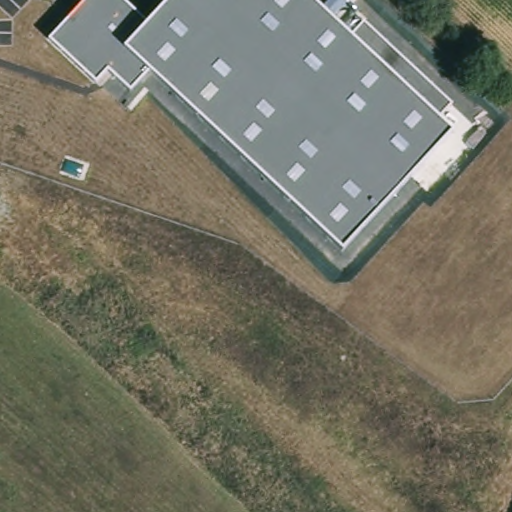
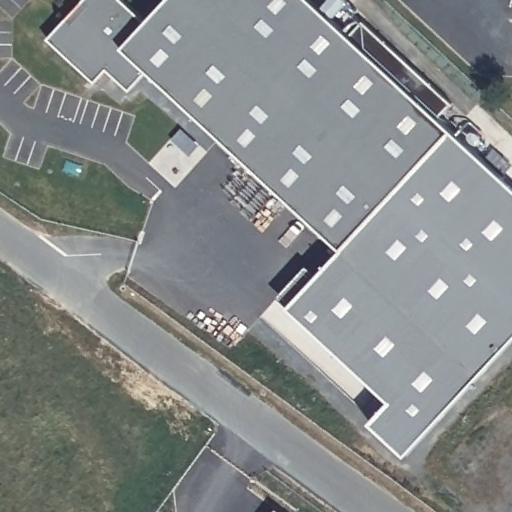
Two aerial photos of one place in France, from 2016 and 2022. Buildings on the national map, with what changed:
unchanged [(168,0),(310,0),(349,36),(362,21),(450,103),(437,119),(449,131),(341,249),(149,69),(130,91),(106,69),(94,83),(45,40),(84,0),(121,0),(146,24),(168,0)]
new [(512,189),(512,339),(405,454),(369,423),(390,401),(288,307),(341,249),(449,131),(512,189)]

